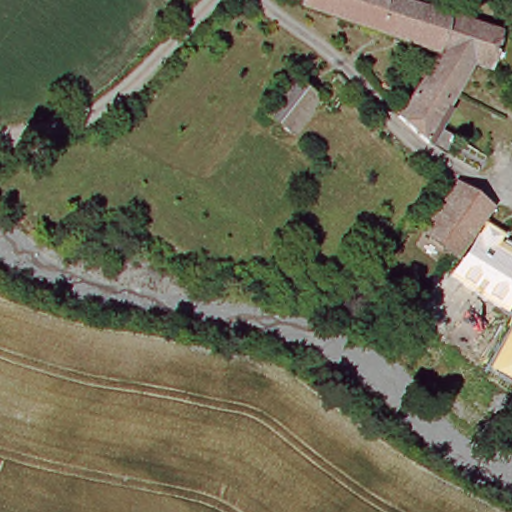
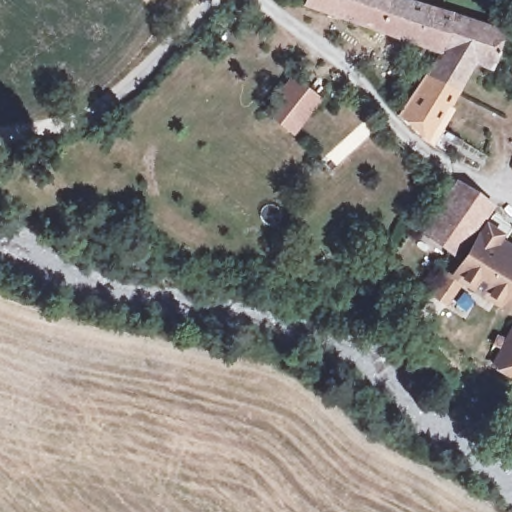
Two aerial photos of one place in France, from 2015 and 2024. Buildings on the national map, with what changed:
unchanged [(295,0),(393,0),(418,7),(445,14),(437,49),(295,0)]
unchanged [(505,29),(497,68),(470,63),(455,93),(425,74),(436,55),(437,54),(437,49),(445,14),(505,29)]
unchanged [(455,93),(432,144),(422,138),(397,110),(422,77),(425,74),(455,93)]
unchanged [(292,81),(322,107),(322,108),(293,142),(263,116),(292,81)]
unchanged [(460,181),(495,207),(452,262),(418,236),(460,181)]
unchanged [(423,295),(447,264),(455,272),(488,229),(495,234),(491,241),(512,257),(512,296),(502,309),(452,277),(433,302),(423,295)]
unchanged [(495,367),(512,340),(512,378),(495,367)]

